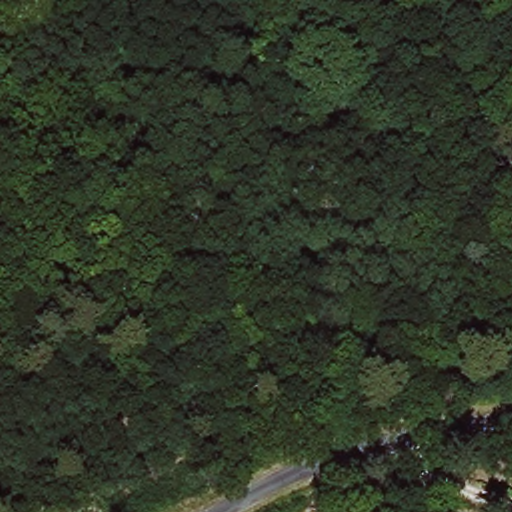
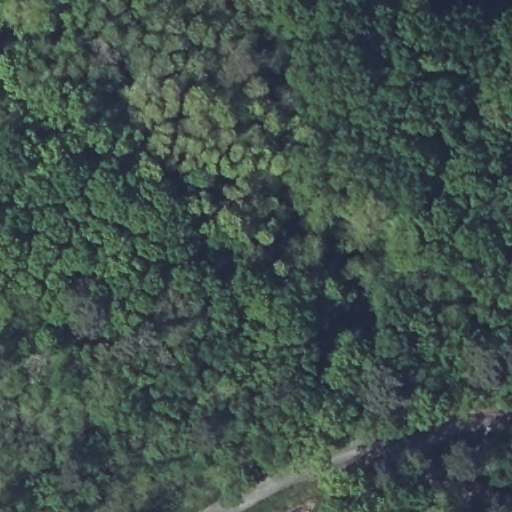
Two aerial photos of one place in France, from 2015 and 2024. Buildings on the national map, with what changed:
unchanged [(210,151),(252,175),(246,186),(264,196),(258,207),(197,177),(210,151)]

